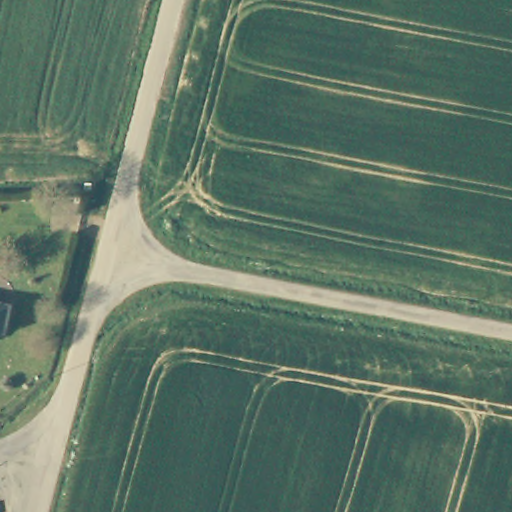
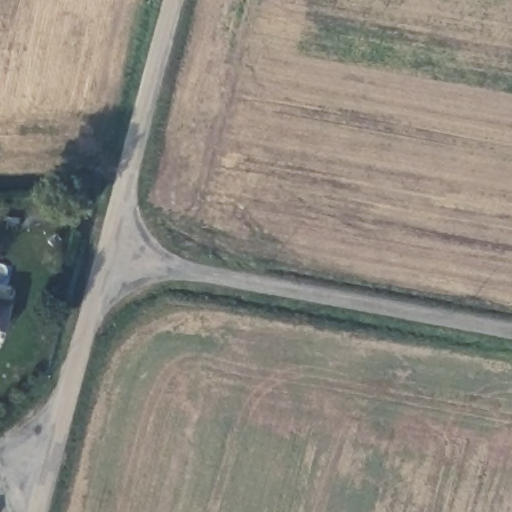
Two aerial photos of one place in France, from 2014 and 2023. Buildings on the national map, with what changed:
unchanged [(12,302),(8,326),(0,324),(0,300),(12,302)]

